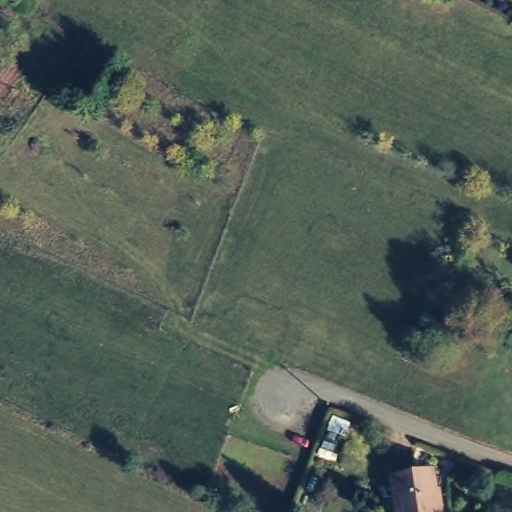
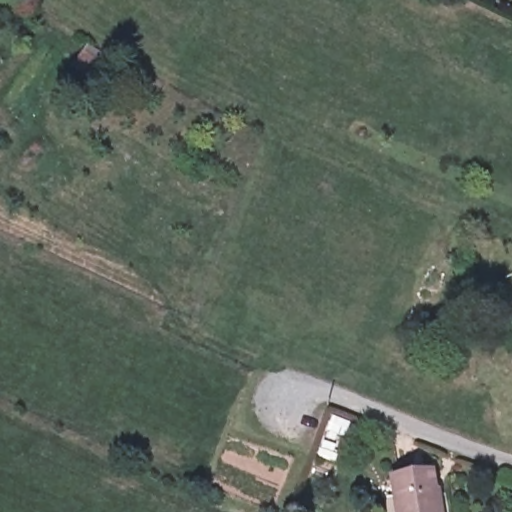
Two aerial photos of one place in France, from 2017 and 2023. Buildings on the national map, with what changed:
unchanged [(103,56),(90,76),(82,72),(67,64),(81,43),(82,44),(103,56)]
unchanged [(440,512),(400,512),(393,471),(432,464),(440,512)]

